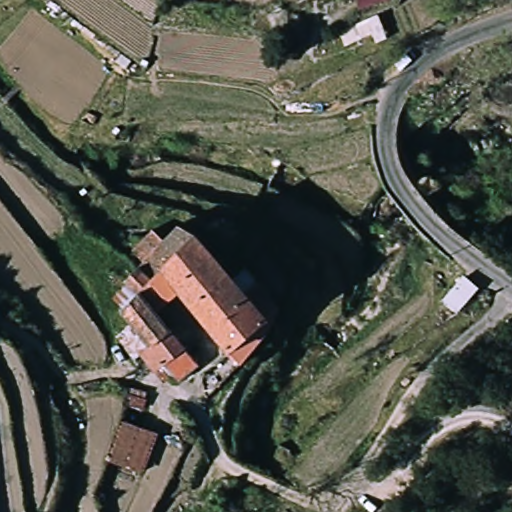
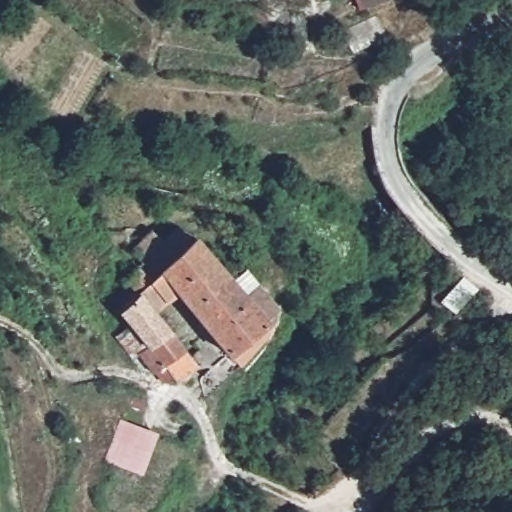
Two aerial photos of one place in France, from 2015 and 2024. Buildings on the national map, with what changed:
unchanged [(131,322),(123,311),(142,295),(131,283),(146,268),(137,257),(165,231),(181,216),(199,228),(234,267),(194,302),(184,291),(172,302),(159,315),(170,327),(135,356),(117,336),(131,322)]
unchanged [(194,302),(234,267),(247,282),(272,309),(270,312),(232,349),(194,302)]
unchanged [(467,311),(454,299),(472,278),(485,288),(467,311)]
unchanged [(170,327),(186,346),(201,362),(184,378),(170,363),(159,372),(157,370),(149,363),(144,368),(135,356),(170,327)]
unchanged [(160,432),(147,480),(106,458),(120,419),(160,432)]

